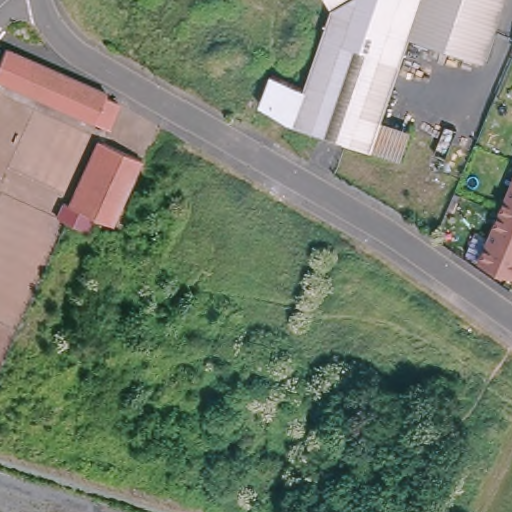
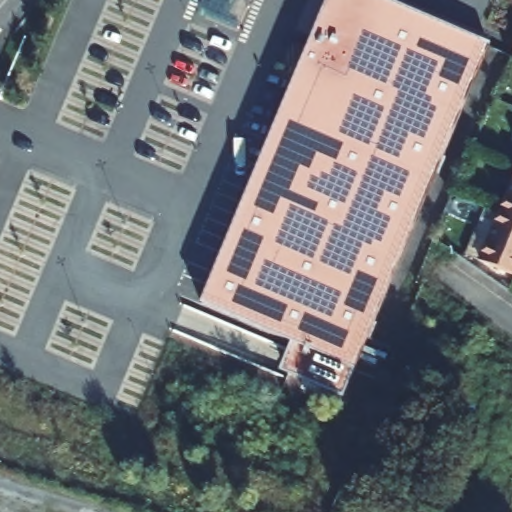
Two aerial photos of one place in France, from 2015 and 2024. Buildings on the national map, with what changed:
new [(490,45),(343,395),(280,370),(292,342),(200,306),(327,0),(383,0),(490,45)]
demolished [(296,125),(330,10),(324,0),(502,0),(485,58),(408,36),(382,119),(373,149),(296,125)]
demolished [(106,120),(95,116),(19,82),(2,74),(0,81),(0,60),(7,44),(31,55),(55,65),(57,65),(63,69),(70,73),(77,77),(87,82),(92,85),(97,88),(105,93),(113,97),(115,99),(106,120)]
demolished [(68,216),(58,212),(65,196),(75,201),(76,197),(102,137),(103,135),(143,152),(115,218),(93,209),(87,224),(68,216)]
unchanged [(474,259),(512,167),(512,274),(474,259)]

